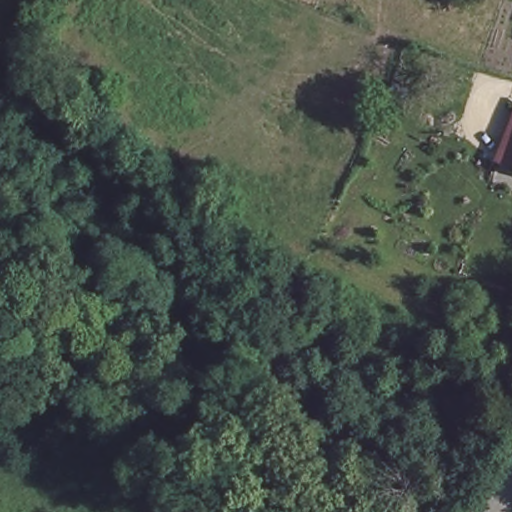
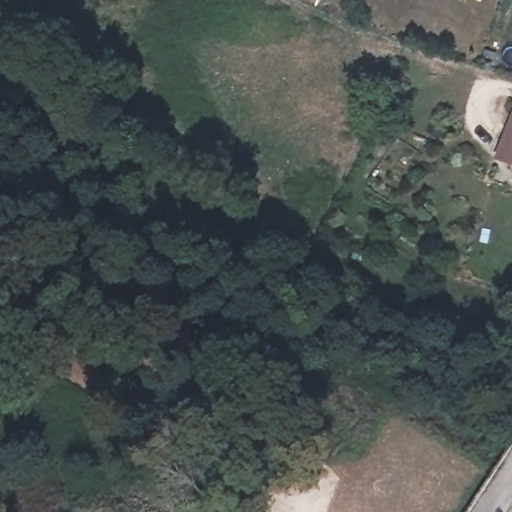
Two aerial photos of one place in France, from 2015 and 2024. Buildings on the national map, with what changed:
unchanged [(490,157),(512,107),(512,165),(502,161),(490,157)]

